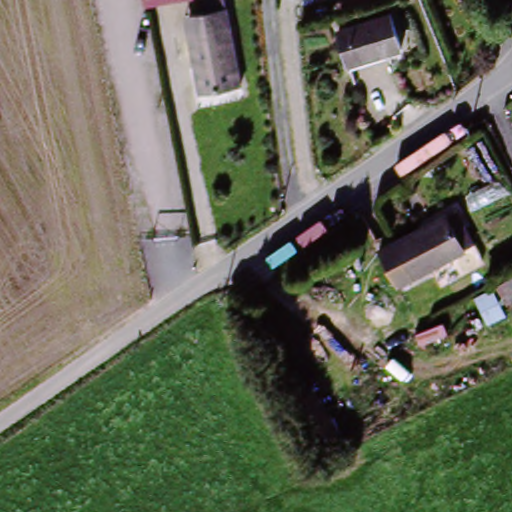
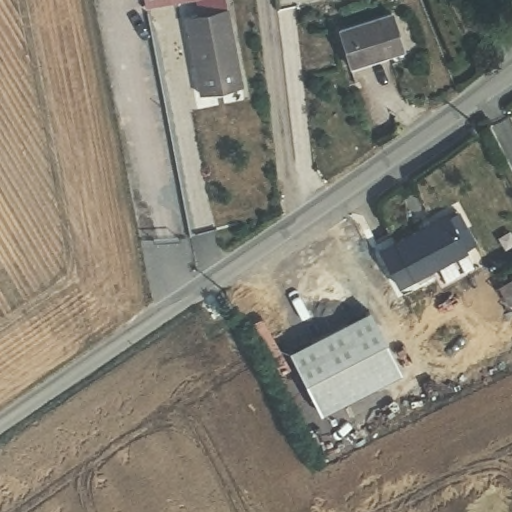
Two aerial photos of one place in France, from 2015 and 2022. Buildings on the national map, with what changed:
unchanged [(141,9),(140,0),(193,0),(193,1),(141,9)]
unchanged [(200,100),(185,21),(205,18),(203,1),(207,0),(224,0),(241,93),(200,100)]
unchanged [(402,48),(350,65),(340,30),(391,14),(402,48)]
unchanged [(447,212),(465,252),(396,283),(380,244),(447,212)]
new [(364,311),(392,372),(312,410),(283,349),(364,311)]

